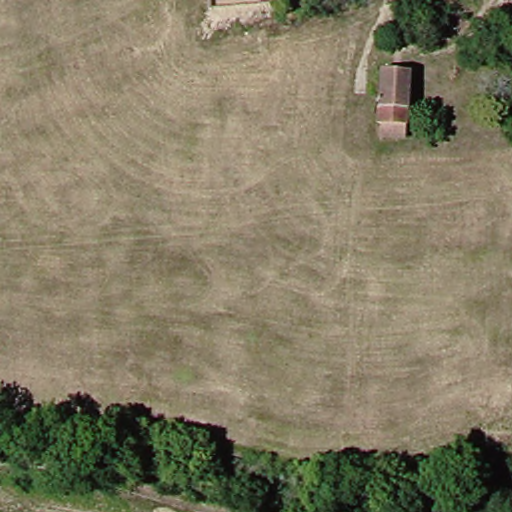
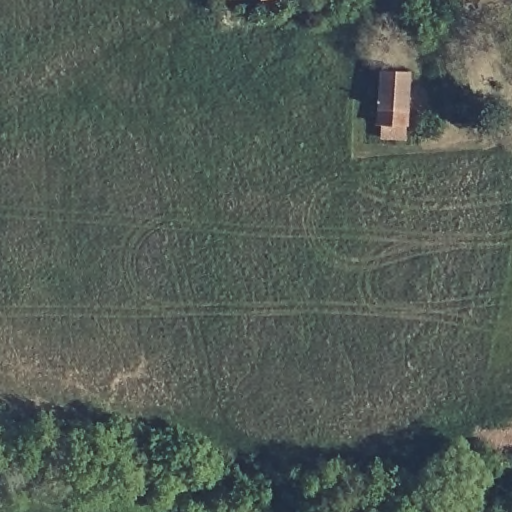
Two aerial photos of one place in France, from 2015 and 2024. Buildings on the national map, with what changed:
unchanged [(373,78),(407,79),(406,132),(373,132),(373,78)]

